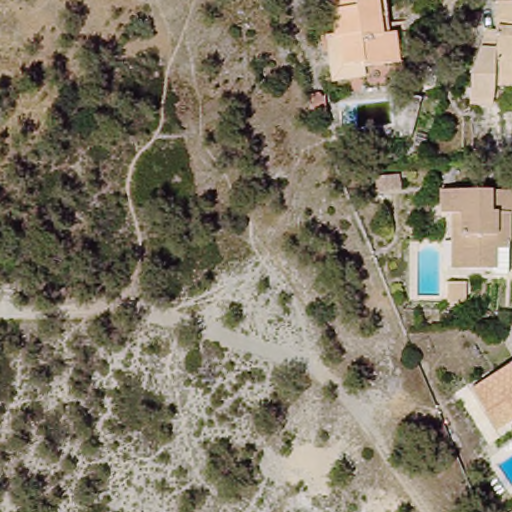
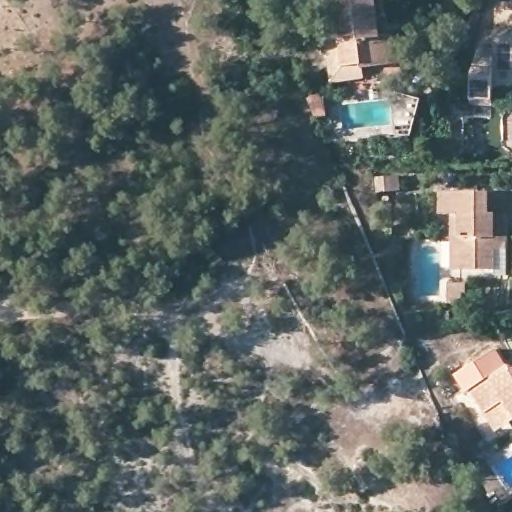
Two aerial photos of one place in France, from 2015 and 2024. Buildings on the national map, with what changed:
unchanged [(333,83),(326,37),(334,36),(329,0),(355,0),(382,0),(388,35),(394,35),(399,64),(365,69),(366,79),(333,83)]
unchanged [(495,80),(493,102),(471,99),(472,75),(473,70),(487,26),(497,25),(499,0),(512,0),(512,82),(495,80)]
unchanged [(400,94),(425,94),(427,132),(411,134),(392,124),(389,101),(400,94)]
unchanged [(451,214),(441,214),(441,190),(512,191),(512,215),(510,215),(509,250),(497,250),(496,266),(462,265),(450,265),(451,214)]
unchanged [(465,280),(465,300),(448,300),(448,279),(465,280)]
unchanged [(506,365),(509,368),(512,366),(512,419),(492,431),(467,390),(506,365)]

